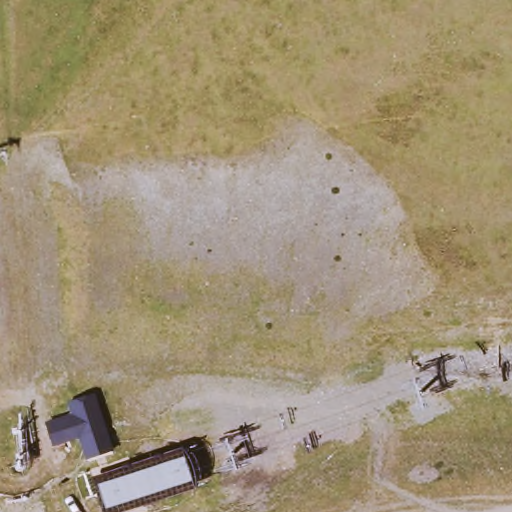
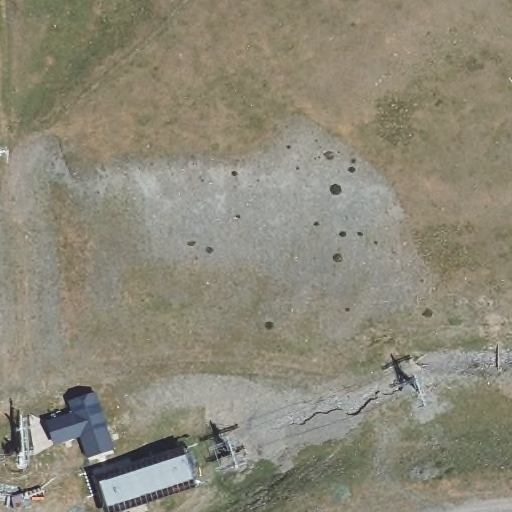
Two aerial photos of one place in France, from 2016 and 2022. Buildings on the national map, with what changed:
unchanged [(96,393),(113,449),(84,458),(78,436),(52,443),(47,422),(72,413),(69,402),(96,393)]
unchanged [(193,488),(117,512),(103,512),(93,479),(181,447),(193,488)]

